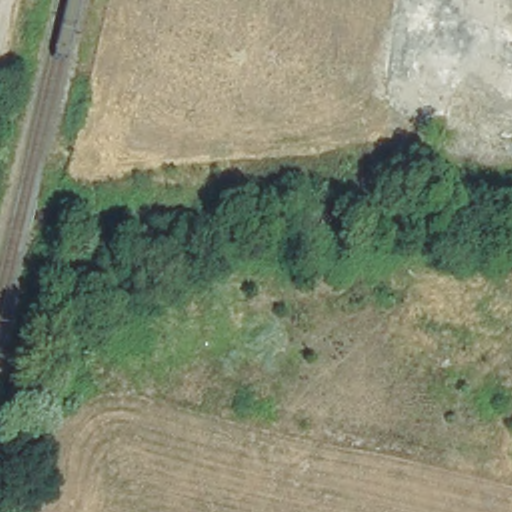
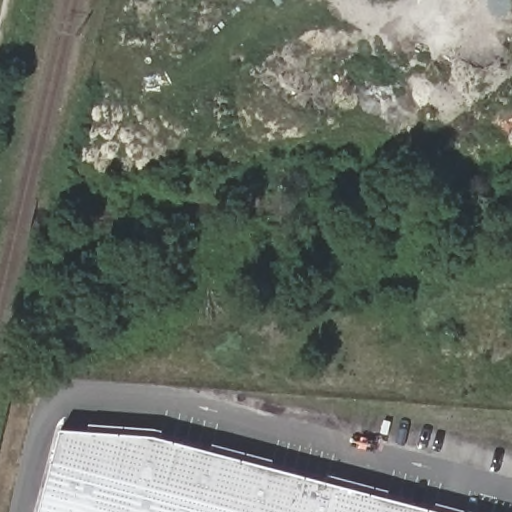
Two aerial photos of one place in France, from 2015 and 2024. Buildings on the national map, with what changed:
demolished [(448,24),(453,0),(488,0),(501,4),(495,30),(494,35),(485,34),(448,24)]
demolished [(504,28),(510,4),(512,4),(512,31),(503,29),(504,28)]
demolished [(491,120),(458,113),(469,63),(502,70),(491,120)]
new [(88,430),(88,423),(152,427),(161,429),(160,436),(210,449),(213,443),(273,459),(272,466),(325,480),(327,474),(389,489),(387,496),(435,509),(437,503),(470,512),(39,512),(60,429),(88,430)]

